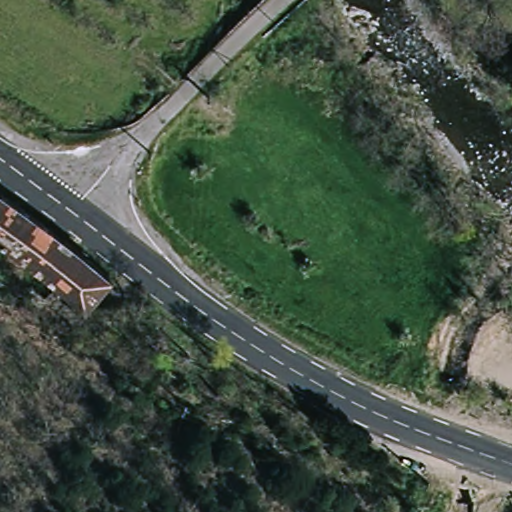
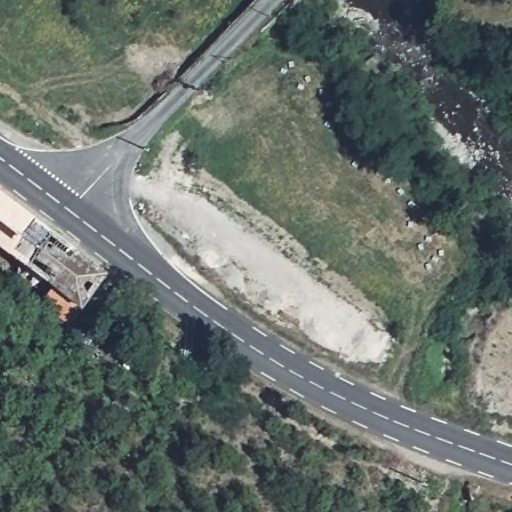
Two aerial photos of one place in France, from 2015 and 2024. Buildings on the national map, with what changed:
unchanged [(59,289),(0,238),(0,181),(115,280),(74,325),(48,302),(59,289)]

